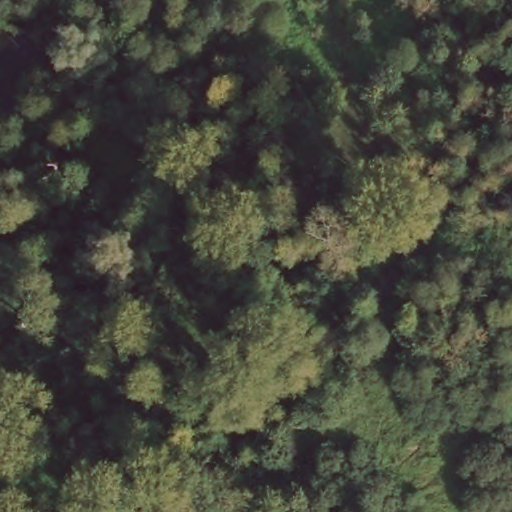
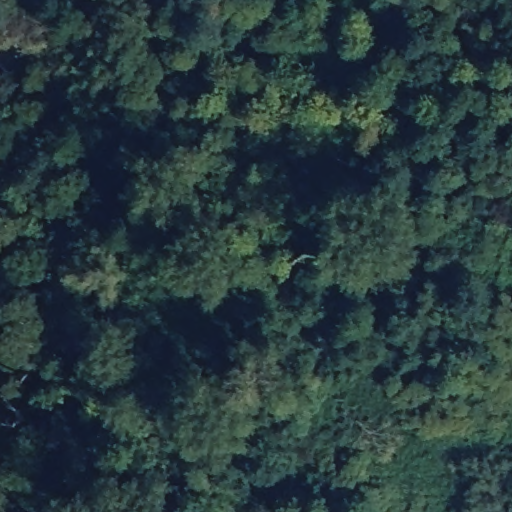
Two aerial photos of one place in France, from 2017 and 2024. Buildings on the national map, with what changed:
[]

